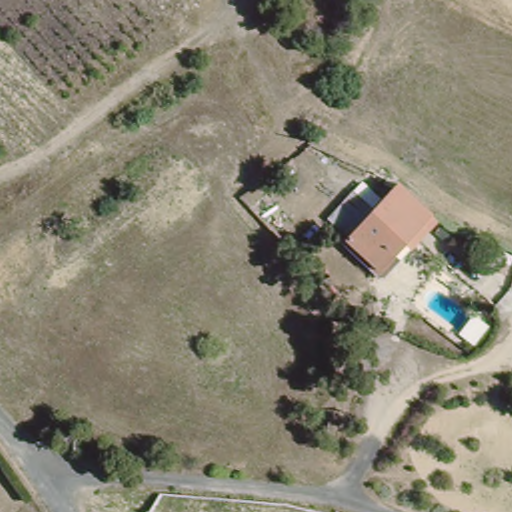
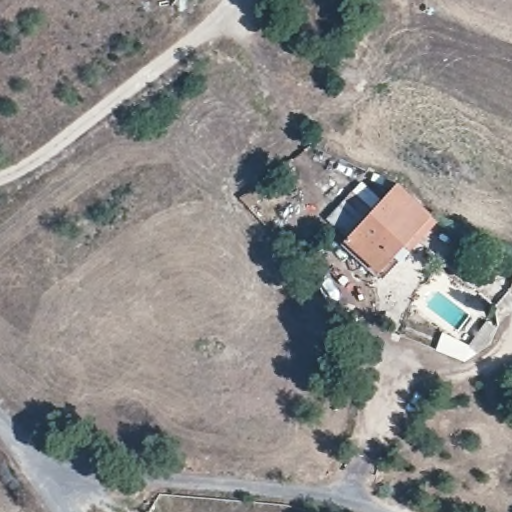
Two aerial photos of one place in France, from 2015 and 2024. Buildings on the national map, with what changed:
unchanged [(387,188),(424,219),(400,249),(389,263),(384,259),(375,271),(342,244),(387,188)]

